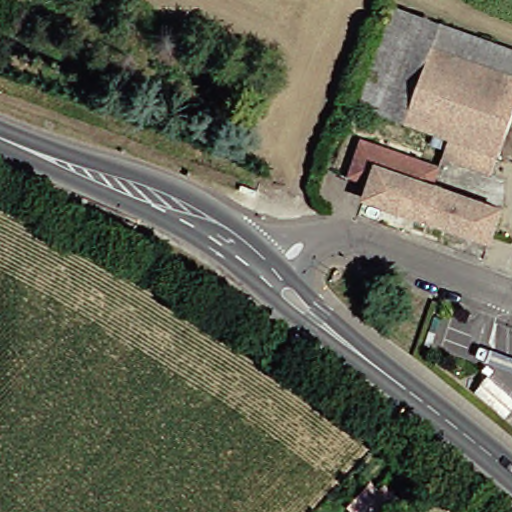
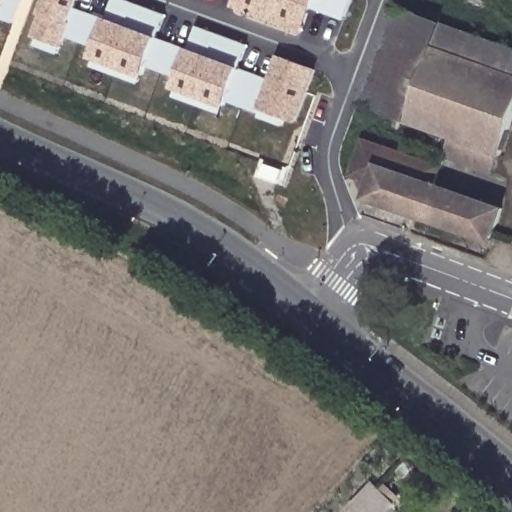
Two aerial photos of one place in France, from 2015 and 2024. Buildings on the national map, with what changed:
new [(16,23),(0,18),(0,0),(24,0),(16,23)]
new [(287,119),(283,127),(260,117),(261,114),(228,100),(226,107),(223,115),(175,97),(174,88),(177,76),(149,66),(145,77),(140,84),(91,67),(90,57),(94,46),(66,35),(62,47),(60,55),(35,46),(39,38),(34,36),(42,15),(40,14),(46,0),(80,0),(78,6),(107,17),(114,0),(130,0),(167,14),(159,37),(190,47),(199,26),(249,45),(240,67),(270,78),(280,54),(318,69),(298,123),(287,119)]
new [(235,0),(353,0),(345,20),(312,7),(305,32),(234,6),(235,0)]
unchanged [(395,7),(512,49),(512,75),(434,47),(407,122),(360,106),(395,7)]
unchanged [(453,160),(458,146),(452,144),(453,139),(455,136),(447,134),(446,137),(407,122),(434,47),(512,75),(512,124),(500,156),(493,174),(453,160)]
unchanged [(373,184),(353,177),(355,171),(366,139),(442,165),(435,185),(423,217),(367,199),(373,184)]
unchanged [(505,209),(493,241),(423,217),(435,185),(505,209)]

